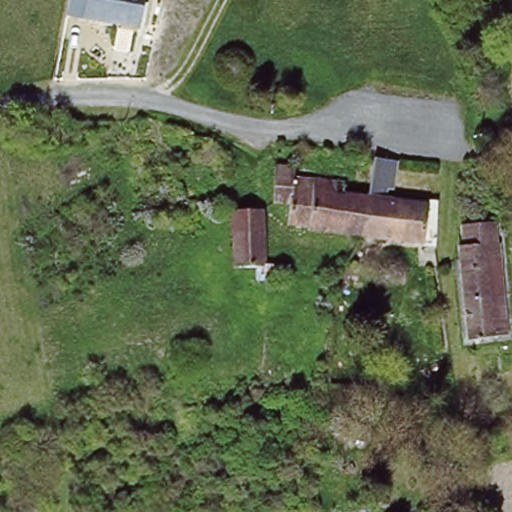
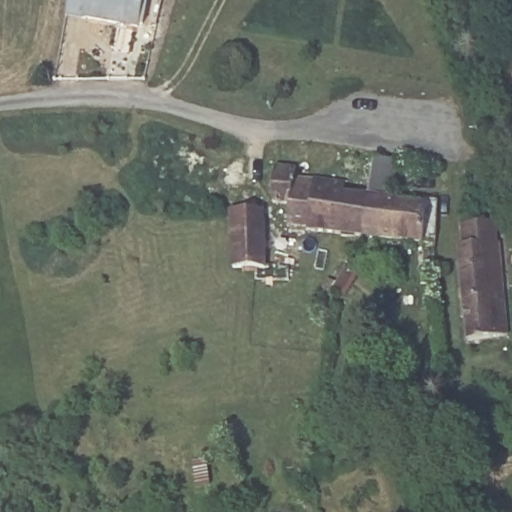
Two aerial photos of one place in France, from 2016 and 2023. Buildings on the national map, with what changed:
unchanged [(70,11),(73,0),(146,0),(141,24),(70,11)]
unchanged [(416,198),(416,193),(434,194),(432,241),(359,238),(362,194),(365,154),(387,156),(387,186),(381,186),(381,197),(416,198)]
unchanged [(337,177),(338,193),(362,194),(359,238),(306,237),(306,231),(287,231),(286,204),(269,203),(272,164),(289,163),(290,175),(337,177)]
unchanged [(269,210),(268,265),(295,268),(295,282),(269,281),(257,280),(256,266),(237,265),(238,236),(235,236),(235,208),(269,210)]
unchanged [(493,219),(495,241),(499,241),(508,331),(470,336),(460,257),(460,253),(466,252),(465,223),(493,219)]
unchanged [(336,293),(330,303),(323,298),(328,288),(336,293)]
unchanged [(370,432),(366,450),(349,447),(353,429),(370,432)]

